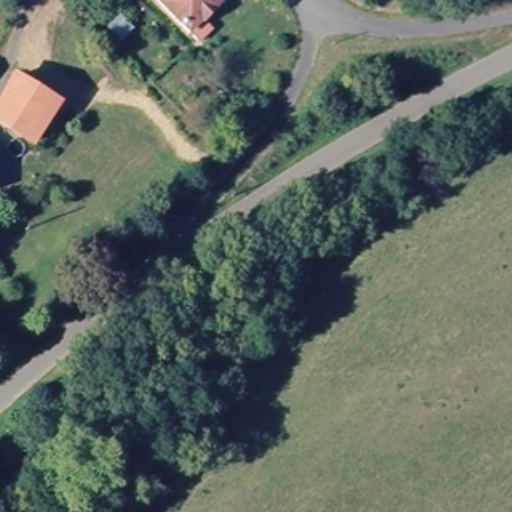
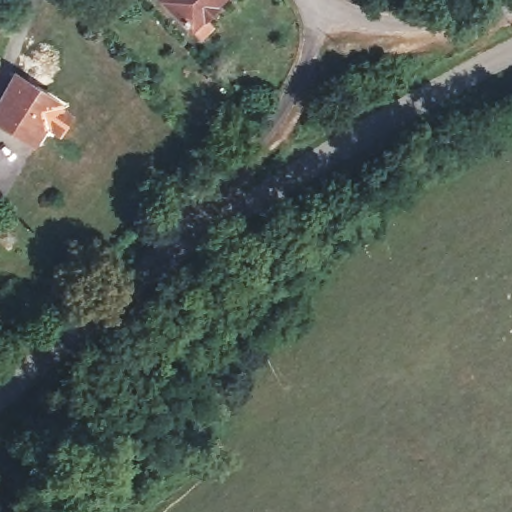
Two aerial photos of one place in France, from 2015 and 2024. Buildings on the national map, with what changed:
unchanged [(164,0),(223,0),(190,30),(164,0)]
unchanged [(51,110),(17,86),(0,111),(0,98),(15,72),(62,104),(33,149),(28,145),(51,110)]
unchanged [(51,110),(28,145),(0,125),(0,111),(17,86),(51,110)]

